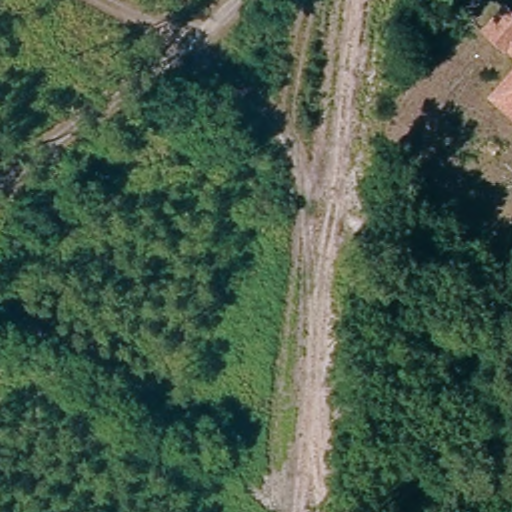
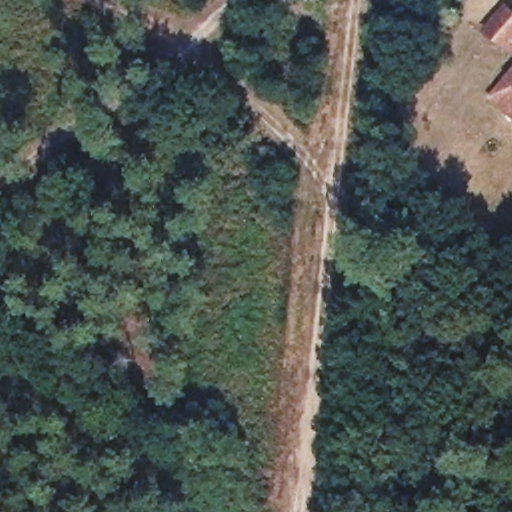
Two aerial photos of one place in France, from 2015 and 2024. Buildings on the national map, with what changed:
unchanged [(506,0),(508,0),(512,4),(512,51),(481,29),(506,0)]
unchanged [(487,95),(512,68),(512,117),(487,95)]

